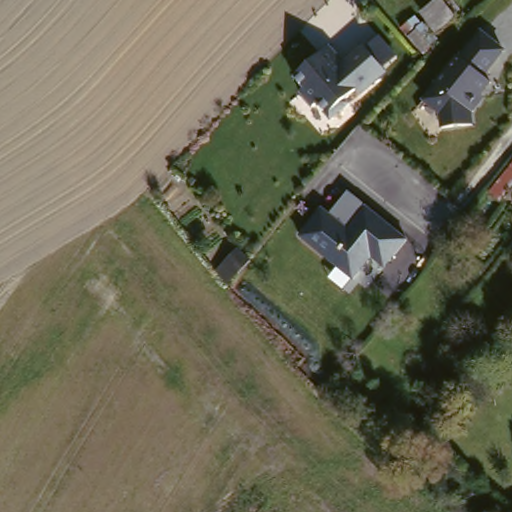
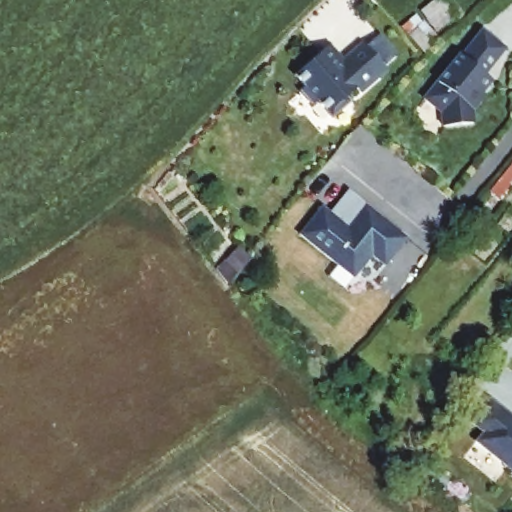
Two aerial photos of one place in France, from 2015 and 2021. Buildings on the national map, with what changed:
unchanged [(433,0),(441,0),(454,16),(436,32),(420,13),(433,0)]
unchanged [(408,15),(430,40),(416,53),(394,28),(408,15)]
unchanged [(441,128),(440,113),(422,99),(436,84),(432,82),(456,52),(461,55),(479,30),(506,51),(486,77),(491,82),(481,96),(484,99),(471,113),(473,125),(441,128)]
unchanged [(359,47),(371,36),(389,56),(377,67),(380,70),(354,93),(350,89),(340,99),(343,103),(326,119),(312,103),(307,107),(294,92),(298,88),(288,77),(317,51),(322,46),(336,62),(356,44),(359,47)]
unchanged [(383,268),(370,256),(352,276),(299,232),(319,205),(331,213),(347,192),(406,240),(383,268)]
new [(488,403),(512,421),(512,472),(475,444),(482,434),(471,425),(488,403)]

